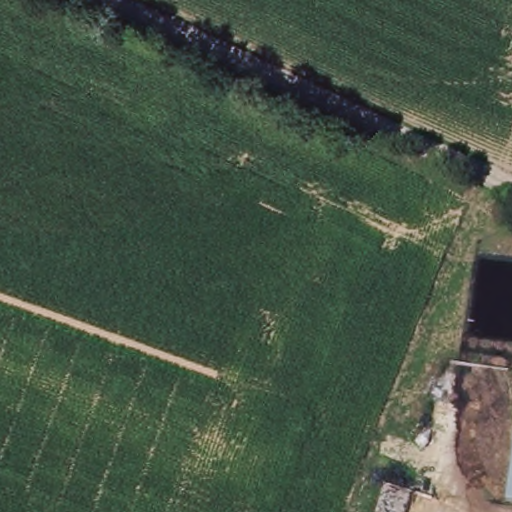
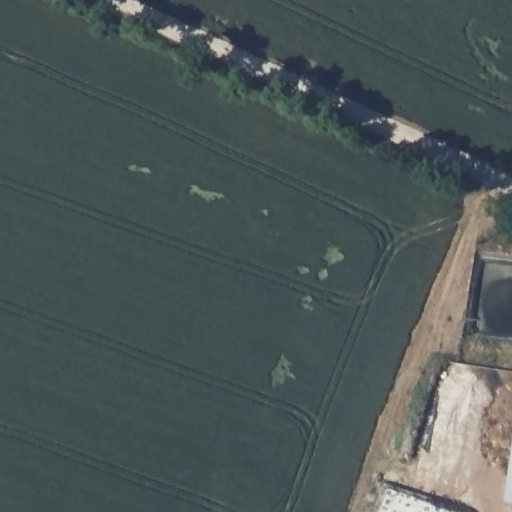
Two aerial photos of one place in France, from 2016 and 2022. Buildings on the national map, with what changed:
unchanged [(511,506),(512,499),(512,506),(511,506)]

